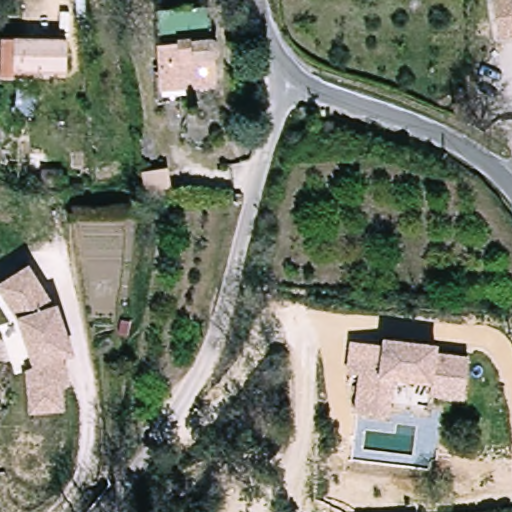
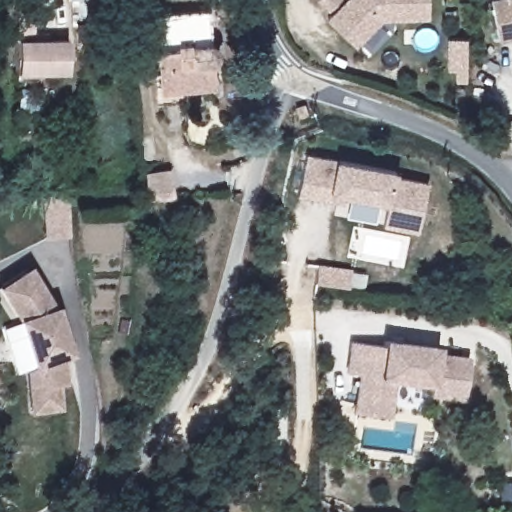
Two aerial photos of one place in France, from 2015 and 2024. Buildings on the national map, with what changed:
new [(325,0),(347,0),(351,5),(356,0),(427,0),(427,31),(379,30),(351,56),(331,36),(326,29),(331,23),(317,8),(325,0)]
unchanged [(512,0),(512,36),(501,39),(491,0),(512,0)]
unchanged [(193,88),(159,91),(153,11),(207,7),(209,40),(213,43),(216,46),(216,51),(214,56),(211,60),(212,80),(213,86),(193,88)]
unchanged [(68,72),(16,71),(16,78),(0,76),(0,44),(0,36),(18,36),(69,39),(68,72)]
new [(328,209),(296,202),(306,163),(395,184),(394,189),(427,197),(416,245),(381,237),(387,215),(345,205),(343,213),(328,209)]
unchanged [(169,166),(173,196),(146,199),(141,171),(169,166)]
unchanged [(33,411),(29,368),(36,365),(21,317),(0,284),(30,265),(53,302),(54,306),(58,305),(74,353),(63,356),(66,367),(68,383),(61,384),(63,400),(63,408),(33,411)]
unchanged [(359,415),(361,395),(363,377),(351,376),(355,344),(386,347),(387,342),(437,347),(436,354),(468,357),(464,390),(464,397),(446,396),(431,394),(432,384),(395,381),(393,398),(391,419),(359,415)]

